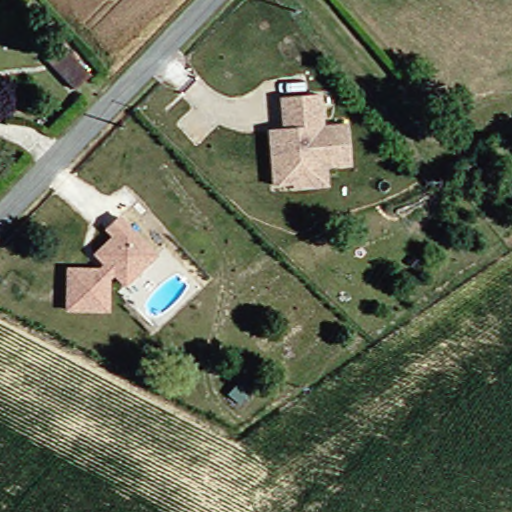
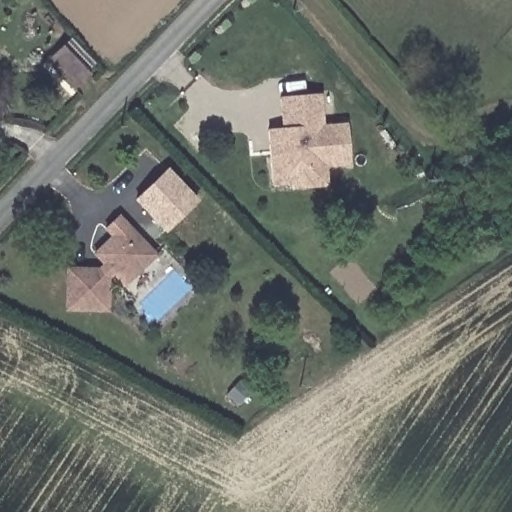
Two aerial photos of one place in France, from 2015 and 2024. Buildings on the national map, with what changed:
unchanged [(79,37),(109,68),(78,92),(51,60),(79,37)]
unchanged [(293,192),(293,187),(270,188),(269,155),(266,131),(281,131),(279,97),(319,95),(321,127),(346,126),(347,167),(324,170),(325,191),(293,192)]
new [(198,199),(164,231),(134,199),(168,167),(198,199)]
unchanged [(71,315),(74,274),(106,277),(108,267),(98,256),(115,240),(108,231),(119,220),(159,256),(129,287),(120,279),(114,282),(112,315),(71,315)]

